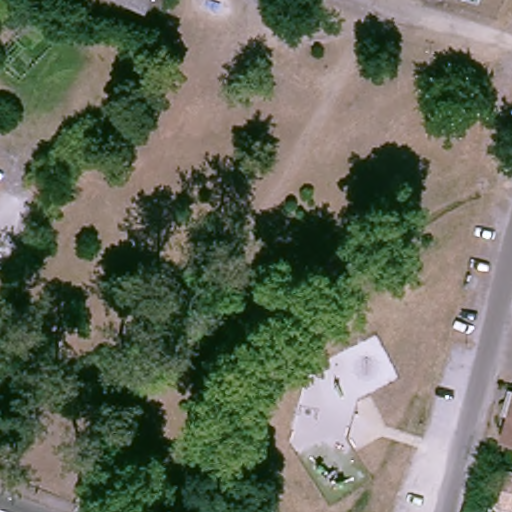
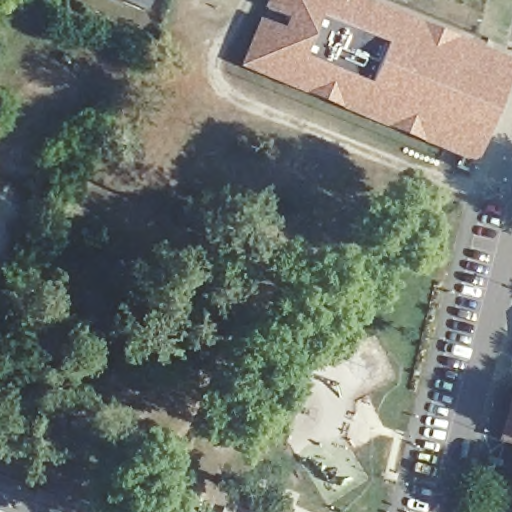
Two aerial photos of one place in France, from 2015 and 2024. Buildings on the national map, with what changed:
unchanged [(138,10),(116,0),(142,0),(138,10)]
new [(487,133),(479,130),(475,138),(470,144),(463,148),(456,151),(249,64),(267,21),(285,29),(290,18),(271,10),(275,0),(357,0),(496,58),(499,67),(500,74),(499,78),(498,81),(496,87),(505,91),(498,107),(494,116),(487,133)]
new [(512,61),(512,73),(505,91),(496,87),(498,81),(499,78),(500,74),(499,67),(496,58),(357,0),(367,0),(512,61)]
new [(247,67),(249,64),(456,151),(463,148),(470,144),(475,138),(479,130),(487,133),(475,162),(472,160),(467,173),(458,169),(463,157),(247,67)]
unchanged [(512,408),(512,442),(502,439),(512,408)]
unchanged [(510,474),(512,474),(512,507),(501,504),(510,474)]

